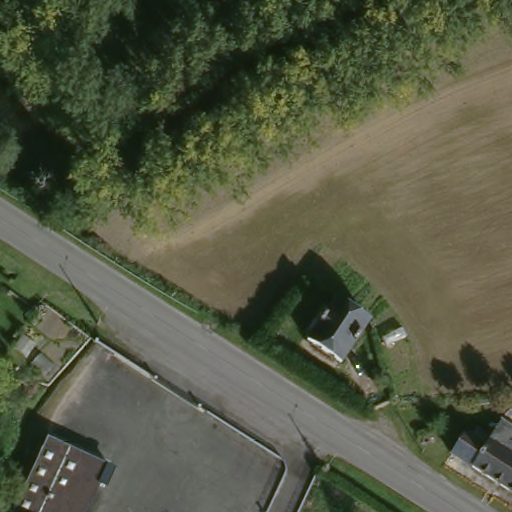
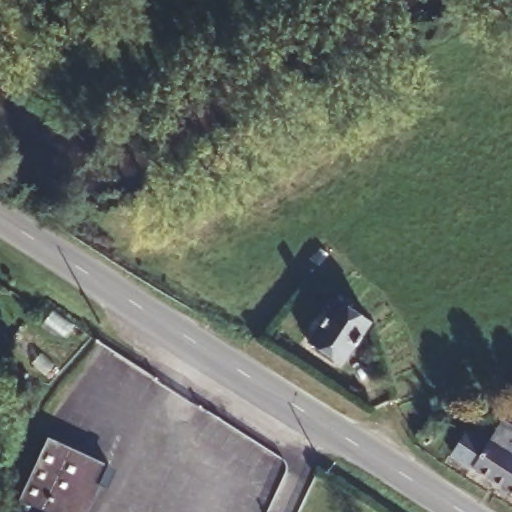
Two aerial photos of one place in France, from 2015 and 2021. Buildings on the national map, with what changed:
unchanged [(375,318),(347,360),(314,337),(318,331),(335,305),(341,296),(375,318)]
unchanged [(508,417),(512,410),(512,419),(508,417)]
unchanged [(502,416),(512,423),(512,488),(473,462),(452,449),(466,427),(486,441),(499,420),(502,416)]
unchanged [(53,434),(114,462),(90,512),(17,512),(53,434)]

